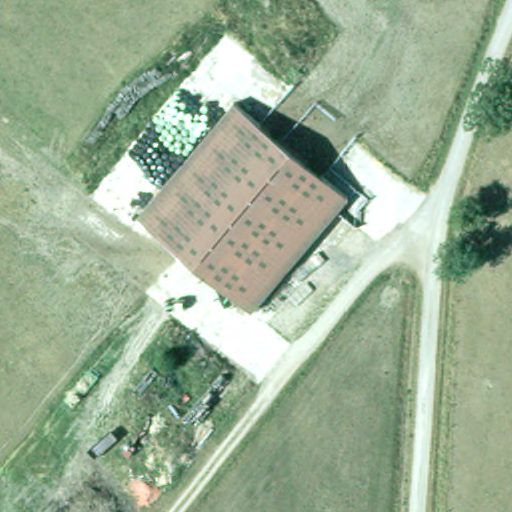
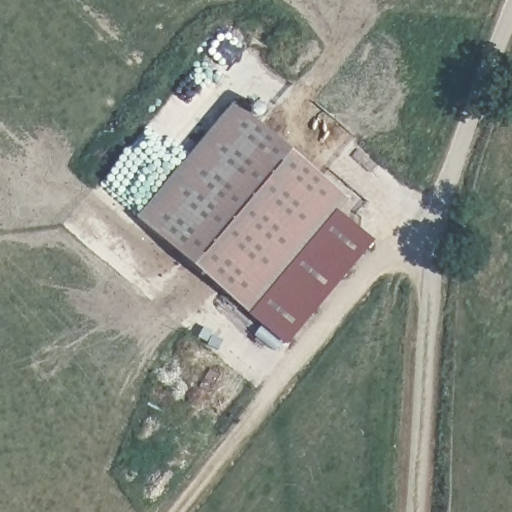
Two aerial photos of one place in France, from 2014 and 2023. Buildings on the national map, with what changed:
unchanged [(227,103),(345,195),(250,310),(135,218),(227,103)]
new [(372,240),(288,342),(250,310),(334,207),(372,240)]

